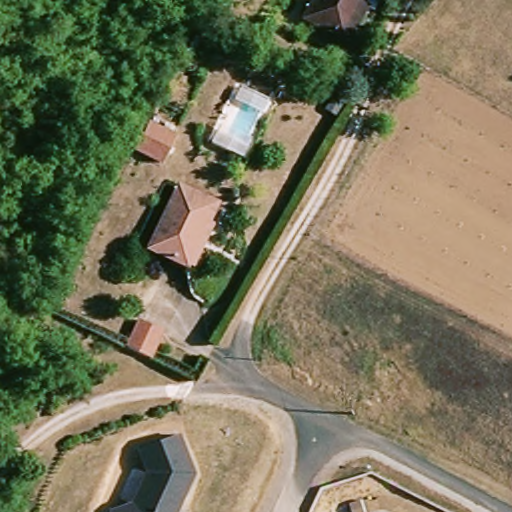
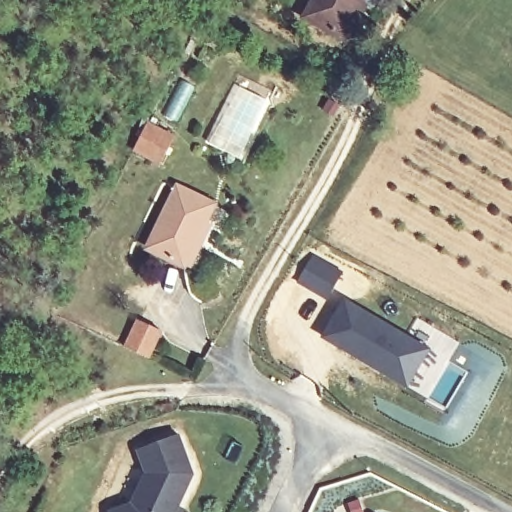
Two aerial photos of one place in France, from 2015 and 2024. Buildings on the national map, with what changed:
unchanged [(309,19),(319,0),(371,0),(349,41),(309,19)]
unchanged [(148,121),(176,136),(162,162),(134,149),(148,121)]
unchanged [(219,136),(233,143),(226,159),(211,151),(219,136)]
unchanged [(178,185),(216,203),(200,235),(208,239),(193,267),(149,245),(178,185)]
new [(344,300),(431,349),(408,387),(321,338),(344,300)]
unchanged [(164,330),(152,358),(124,346),(136,320),(164,330)]
unchanged [(133,502),(148,471),(139,447),(183,432),(198,474),(179,512),(112,512),(112,511),(133,502)]

